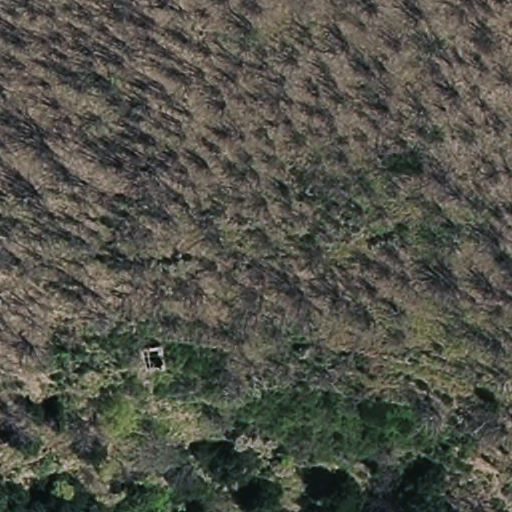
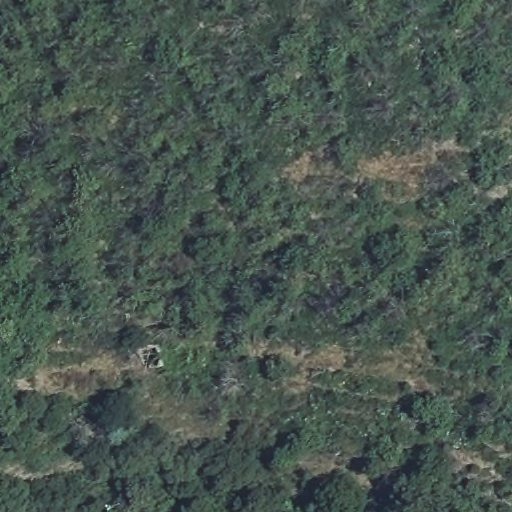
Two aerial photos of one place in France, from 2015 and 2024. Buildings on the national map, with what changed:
unchanged [(159,342),(158,361),(138,362),(136,344),(159,342)]

